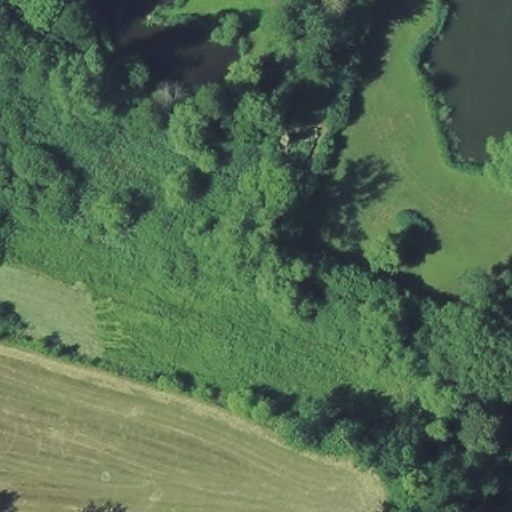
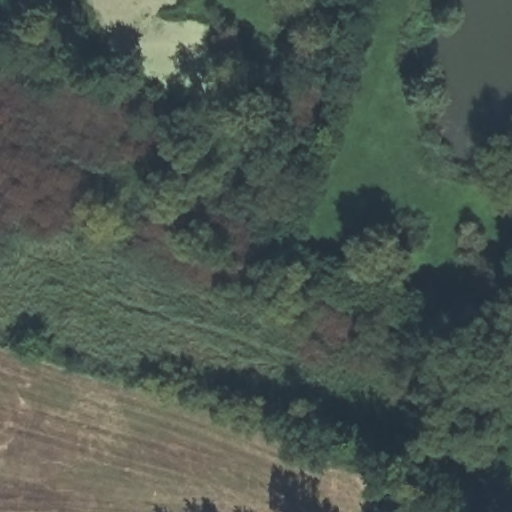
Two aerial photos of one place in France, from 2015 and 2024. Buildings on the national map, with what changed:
unchanged [(6,2),(1,0),(7,0),(6,2)]

